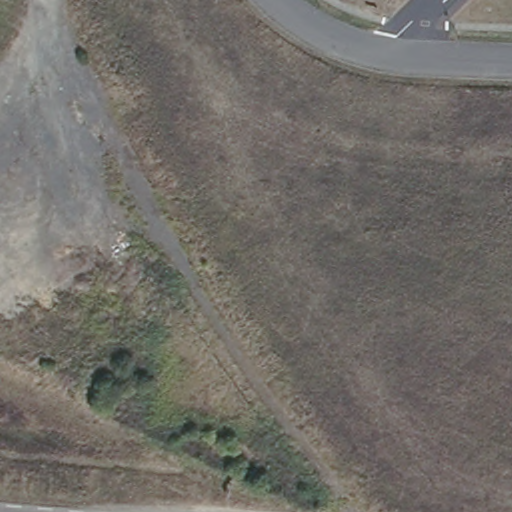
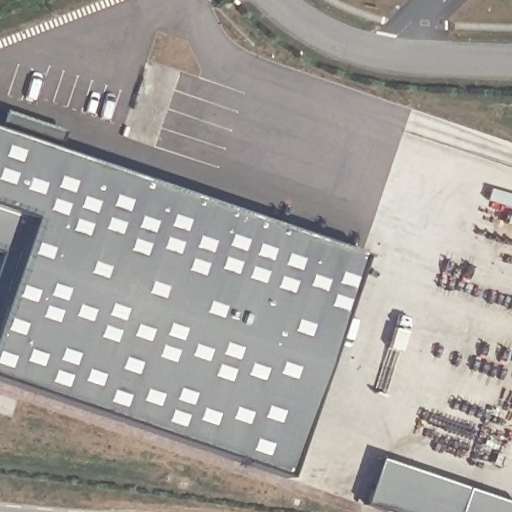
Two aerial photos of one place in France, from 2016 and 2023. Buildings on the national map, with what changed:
new [(176,441),(0,381),(0,113),(1,110),(41,124),(35,143),(360,254),(325,356),(218,319),(176,441)]
new [(61,130),(55,150),(35,143),(41,124),(61,130)]
new [(176,441),(218,319),(325,356),(284,478),(176,441)]
new [(377,457),(512,504),(512,512),(382,512),(360,504),(377,457)]

